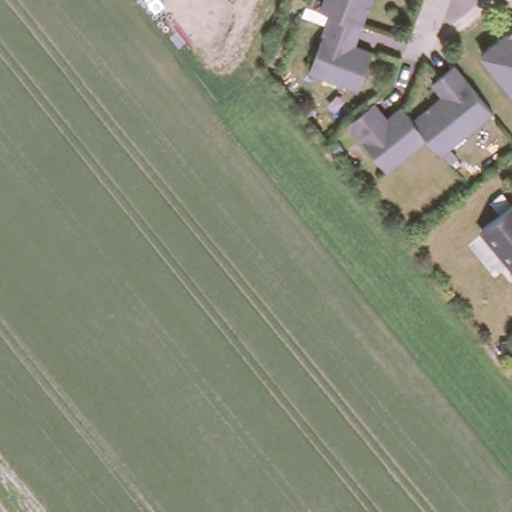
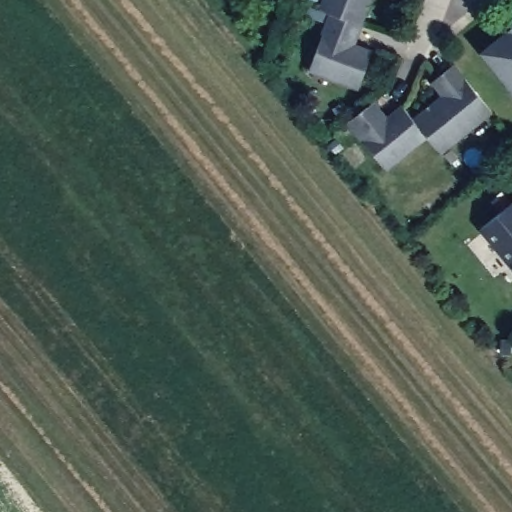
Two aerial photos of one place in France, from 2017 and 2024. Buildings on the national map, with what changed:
unchanged [(318,9),(321,0),(367,0),(350,45),(369,52),(354,89),(306,70),(328,13),(318,9)]
unchanged [(480,54),(512,27),(512,92),(480,54)]
unchanged [(371,104),(384,120),(400,107),(411,121),(441,96),(429,83),(452,65),(491,113),(439,154),(426,138),(385,171),(346,124),(371,104)]
unchanged [(476,230),(512,205),(512,275),(476,230)]

